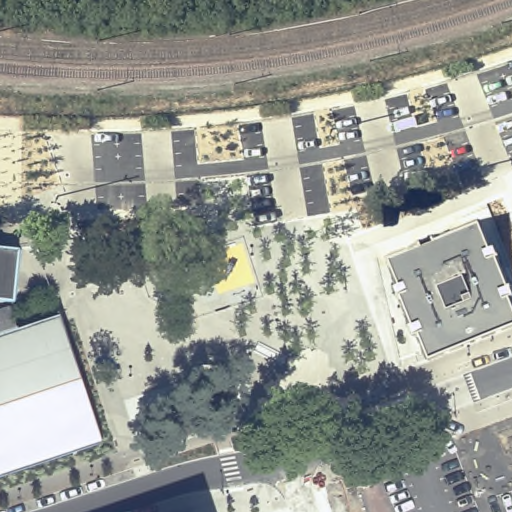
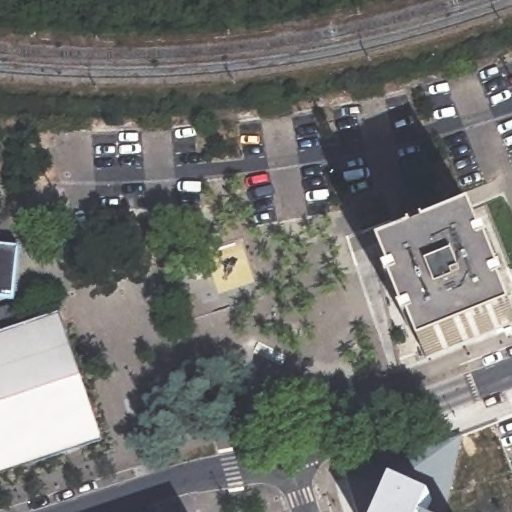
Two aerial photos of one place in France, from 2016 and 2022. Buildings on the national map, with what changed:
unchanged [(417,327),(412,329),(407,318),(411,317),(400,291),(397,292),(393,283),(399,280),(389,255),(478,219),(488,244),(495,242),(498,252),(495,254),(505,279),(509,277),(512,285),(512,288),(507,291),(512,303),(512,318),(428,352),(417,327)]
unchanged [(17,303),(0,301),(0,248),(22,250),(17,303)]
unchanged [(19,328),(0,335),(0,311),(12,307),(19,328)]
unchanged [(100,437),(0,470),(0,343),(62,322),(100,437)]
new [(375,494),(382,479),(388,479),(397,473),(437,493),(442,504),(438,512),(371,512),(377,497),(375,494)]

